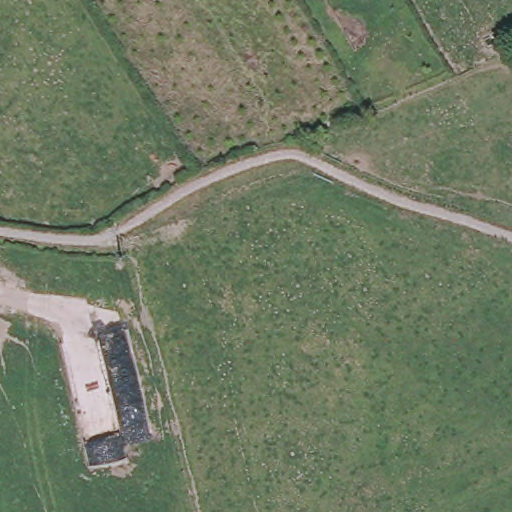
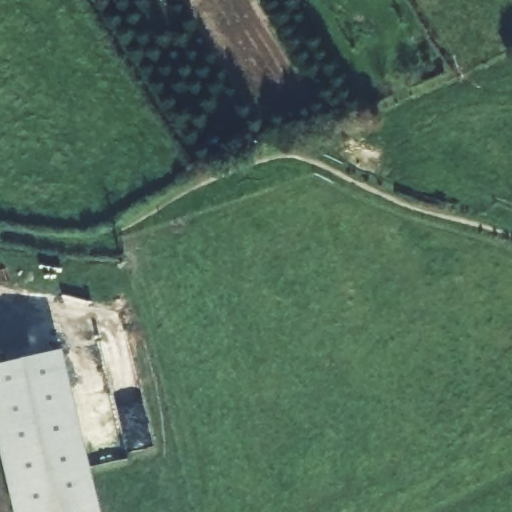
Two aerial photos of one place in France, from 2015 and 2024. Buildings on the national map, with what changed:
new [(13,512),(0,456),(0,363),(60,350),(98,512),(13,512)]

